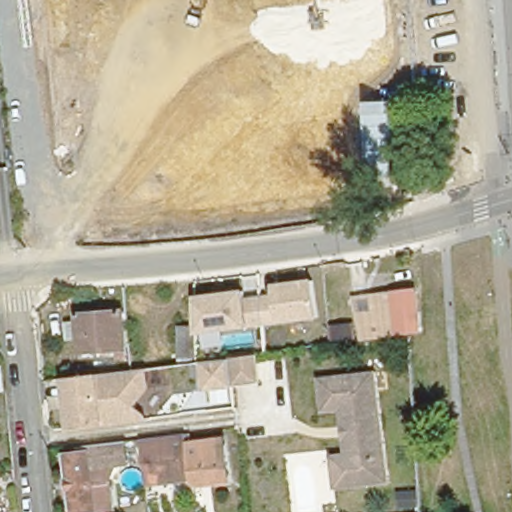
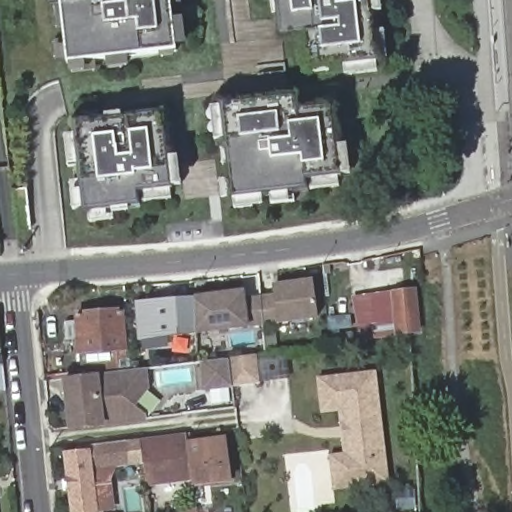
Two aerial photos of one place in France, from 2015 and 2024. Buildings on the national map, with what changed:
new [(176,46),(176,50),(67,63),(60,3),(50,5),(49,0),(181,0),(182,4),(171,5),(173,19),(184,17),(186,44),(176,46)]
new [(345,75),(344,65),(307,69),(301,15),(277,18),(275,0),(381,0),(382,12),(372,13),(377,61),(376,61),(377,71),(345,75)]
new [(66,60),(56,61),(54,39),(64,38),(66,60)]
new [(280,120),(297,118),(296,109),(332,105),(340,175),(306,179),(307,189),(232,198),(225,138),(215,139),(211,107),(221,106),(221,104),(277,98),(280,120)]
new [(89,219),(88,211),(84,212),(74,123),(82,122),(81,112),(98,110),(99,120),(163,112),(171,188),(169,188),(170,198),(143,201),(142,191),(138,192),(140,205),(105,209),(105,217),(89,219)]
new [(347,145),(350,172),(340,173),(337,146),(347,145)]
new [(18,231),(17,221),(13,190),(27,188),(30,219),(31,229),(18,231)]
new [(287,192),(288,200),(271,202),(270,194),(287,192)]
unchanged [(313,279),(319,321),(280,324),(250,328),(196,335),(195,295),(245,289),(245,298),(273,294),(273,284),(313,279)]
unchanged [(394,292),(415,290),(418,327),(419,331),(408,332),(358,336),(356,312),(371,311),(370,295),(394,293),(394,292)]
new [(195,297),(195,301),(196,332),(196,334),(179,336),(137,340),(135,301),(176,298),(195,297)]
unchanged [(75,315),(121,309),(126,353),(118,354),(117,346),(79,351),(75,315)]
unchanged [(263,386),(202,393),(199,362),(260,354),(263,386)]
unchanged [(147,368),(154,423),(67,431),(61,379),(147,368)]
unchanged [(340,441),(345,440),(344,429),(339,430),(338,423),(337,414),(320,416),(315,382),(373,374),(378,419),(387,486),(346,491),(331,493),(327,459),(342,457),(340,441)]
unchanged [(187,434),(188,441),(192,474),(145,479),(141,438),(148,438),(187,434)]
unchanged [(225,438),(230,480),(193,483),(192,474),(188,441),(225,438)]
unchanged [(93,512),(84,512),(84,510),(70,512),(65,453),(78,452),(77,445),(118,441),(120,465),(112,465),(106,482),(109,508),(92,510),(93,512)]
unchanged [(200,512),(184,512),(184,505),(199,503),(200,512)]

